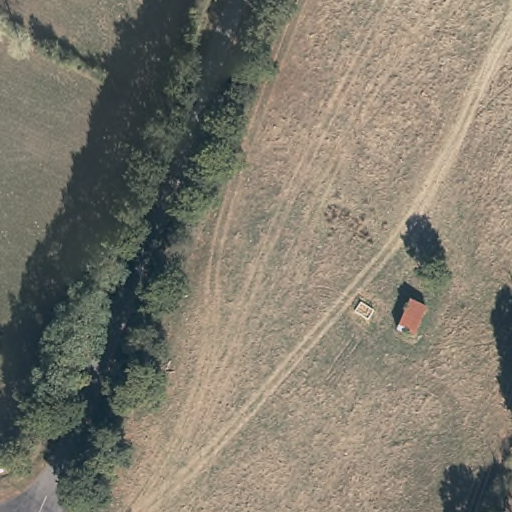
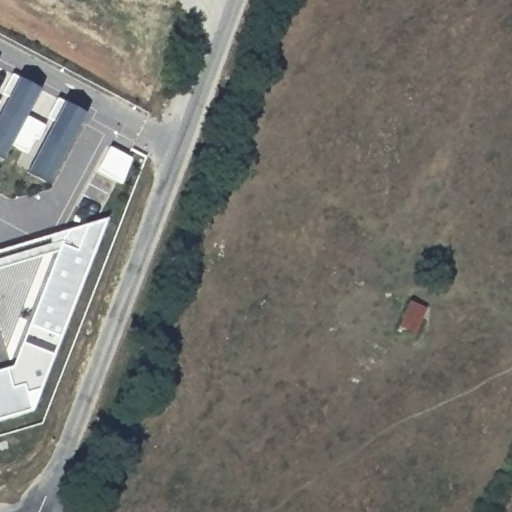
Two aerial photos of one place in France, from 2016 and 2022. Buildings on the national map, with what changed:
new [(46,125),(38,141),(35,138),(28,153),(11,143),(4,157),(0,154),(0,118),(10,98),(2,93),(12,73),(21,79),(41,90),(26,115),(46,125)]
new [(57,97),(66,103),(87,114),(51,183),(31,172),(56,121),(47,116),(57,97)]
new [(68,229),(109,217),(60,339),(30,326),(60,251),(68,229)]
new [(60,251),(0,268),(0,250),(68,229),(60,251)]
unchanged [(395,332),(407,299),(427,306),(416,338),(395,332)]
new [(23,341),(55,354),(34,410),(0,420),(0,369),(12,365),(23,341)]

